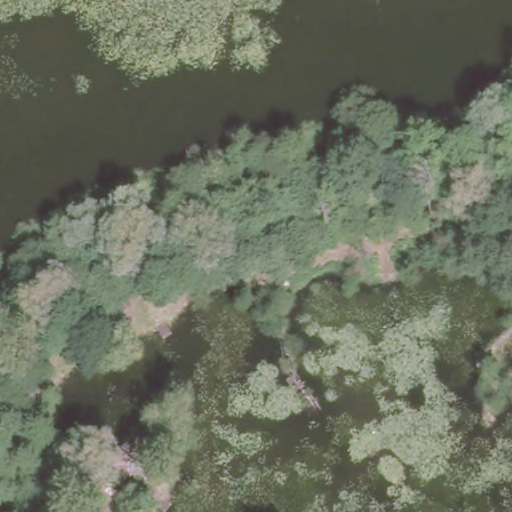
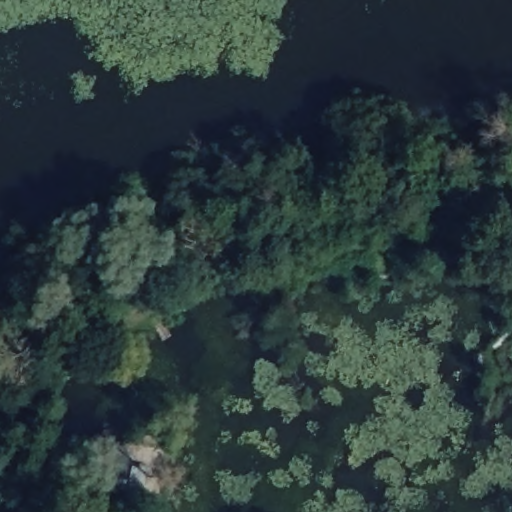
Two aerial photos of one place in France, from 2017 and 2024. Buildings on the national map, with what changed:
unchanged [(357,0),(363,0),(360,4),(357,0)]
unchanged [(120,480),(96,480),(83,443),(104,431),(114,449),(135,457),(120,480)]

